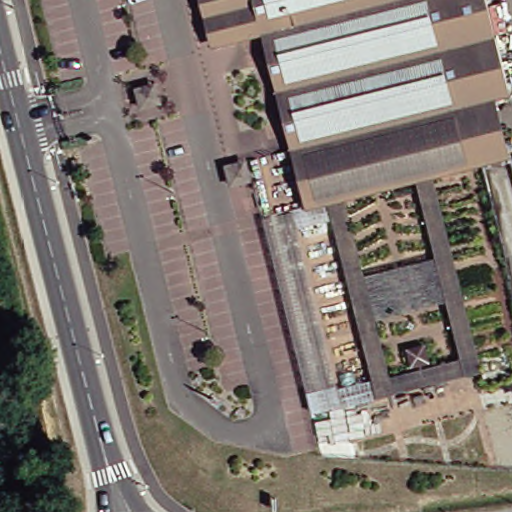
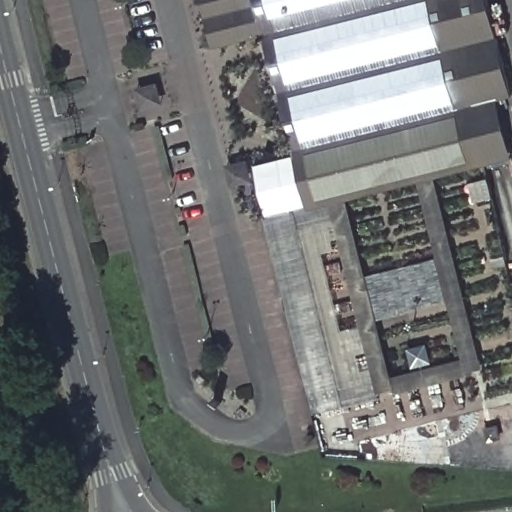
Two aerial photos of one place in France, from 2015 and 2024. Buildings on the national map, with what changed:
unchanged [(511,96),(497,100),(465,107),(287,149),(260,28),(215,39),(206,0),(488,0),(511,96)]
unchanged [(497,100),(510,155),(477,163),(465,107),(497,100)]
unchanged [(477,163),(300,204),(287,149),(465,107),(477,163)]
new [(289,156),(300,204),(265,212),(255,163),(289,156)]
unchanged [(483,370),(380,397),(328,199),(343,196),(367,273),(435,256),(416,178),(436,173),(483,370)]

